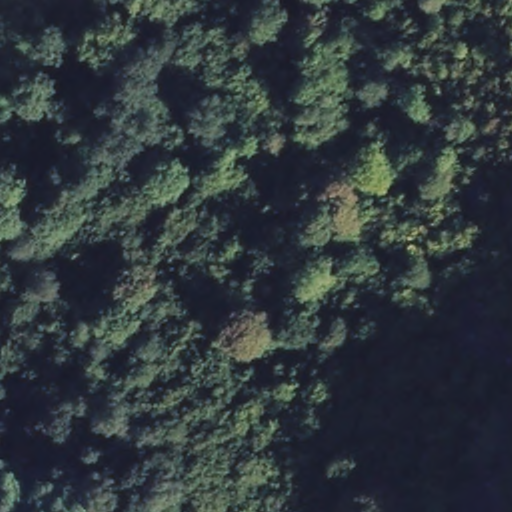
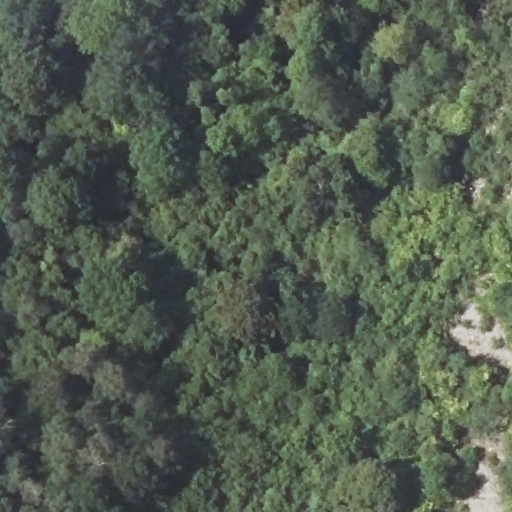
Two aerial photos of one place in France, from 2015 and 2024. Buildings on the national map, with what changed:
[]

